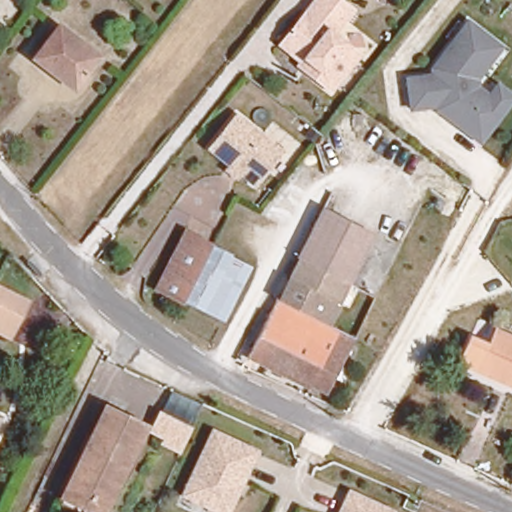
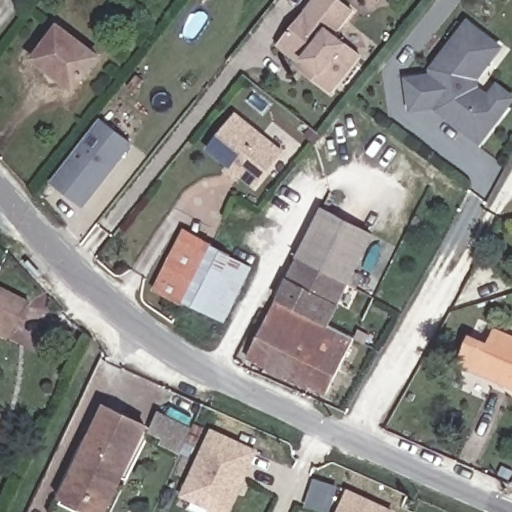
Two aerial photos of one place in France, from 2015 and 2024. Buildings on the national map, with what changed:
unchanged [(282,37),(285,34),(316,0),(353,0),(358,5),(338,27),(362,49),(328,86),(306,66),(297,59),(301,54),(282,37)]
unchanged [(465,21),(505,46),(478,80),(479,89),(488,94),(495,84),(512,95),(512,106),(480,145),(433,110),(408,114),(401,77),(426,74),(465,21)]
unchanged [(97,59),(75,89),(42,63),(34,56),(56,26),(64,32),(97,59)]
unchanged [(221,168),(225,163),(216,155),(205,146),(233,112),(279,149),(251,184),(242,177),(237,172),(232,177),(221,168)]
new [(84,208),(50,182),(100,118),(133,144),(84,208)]
unchanged [(368,234),(342,296),(325,330),(353,345),(325,400),(307,391),(305,393),(244,363),(244,362),(240,359),(245,349),(249,352),(273,303),(276,305),(320,218),(368,234)]
unchanged [(184,239),(207,250),(249,270),(223,326),(180,305),(157,294),(184,239)]
unchanged [(27,303),(10,339),(0,335),(0,289),(27,303)]
unchanged [(490,333),(512,342),(512,395),(470,379),(490,333)]
unchanged [(92,412),(135,432),(130,444),(97,431),(81,467),(70,461),(92,412)]
new [(156,418),(189,433),(181,450),(149,435),(156,418)]
unchanged [(260,451),(230,512),(205,512),(179,501),(211,428),(260,451)]
unchanged [(81,467),(97,431),(130,444),(97,512),(69,512),(50,503),(70,461),(81,467)]
unchanged [(397,512),(337,512),(347,489),(397,512)]

